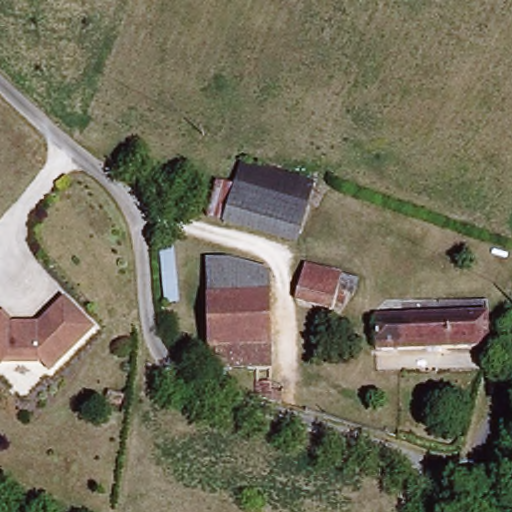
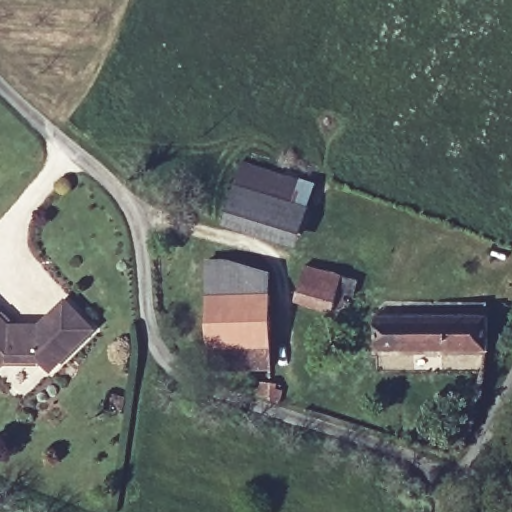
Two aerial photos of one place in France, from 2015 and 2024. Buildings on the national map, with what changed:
unchanged [(218,226),(234,163),(301,178),(285,242),(218,226)]
unchanged [(180,309),(163,309),(158,249),(174,248),(180,309)]
unchanged [(328,316),(287,303),(296,271),(301,256),(319,260),(315,277),(337,284),(328,316)]
unchanged [(204,369),(198,294),(193,294),(194,261),(222,263),(263,270),(263,292),(267,373),(279,378),(273,401),(251,392),(249,368),(204,369)]
unchanged [(91,335),(41,382),(0,381),(0,320),(8,328),(38,329),(63,305),(91,335)]
unchanged [(366,319),(483,315),(483,348),(369,353),(366,319)]

